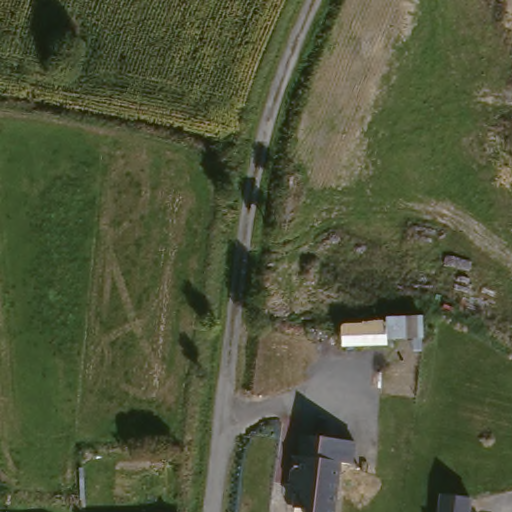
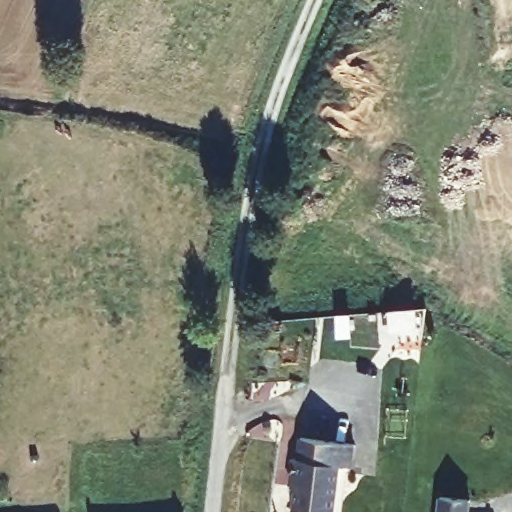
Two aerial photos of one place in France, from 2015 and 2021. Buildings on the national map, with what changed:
unchanged [(342,463),(336,512),(317,512),(317,510),(302,508),(305,491),(298,484),(301,458),(303,443),(357,450),(355,465),(342,463)]
unchanged [(471,512),(441,512),(442,501),(442,498),(447,499),(472,502),(471,512)]

